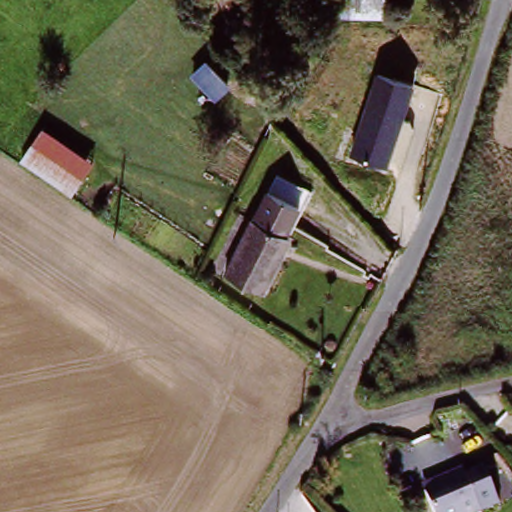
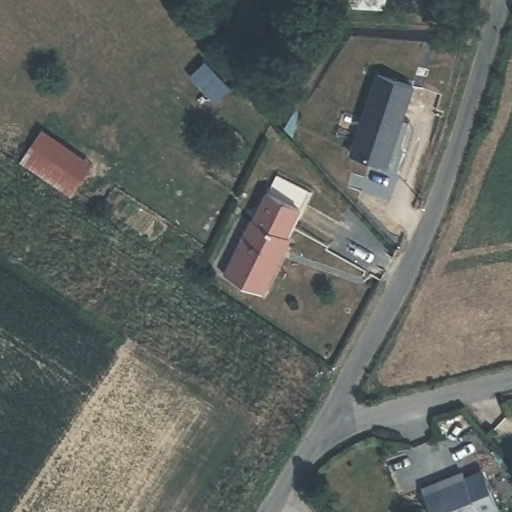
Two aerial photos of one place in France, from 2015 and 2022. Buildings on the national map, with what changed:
unchanged [(379,69),(415,83),(387,166),(350,154),(379,69)]
unchanged [(70,201),(16,165),(40,128),(95,162),(70,201)]
unchanged [(260,298),(222,279),(247,225),(250,225),(272,182),(310,201),(260,298)]
unchanged [(425,495),(450,483),(448,478),(462,471),(480,512),(432,512),(425,495)]

